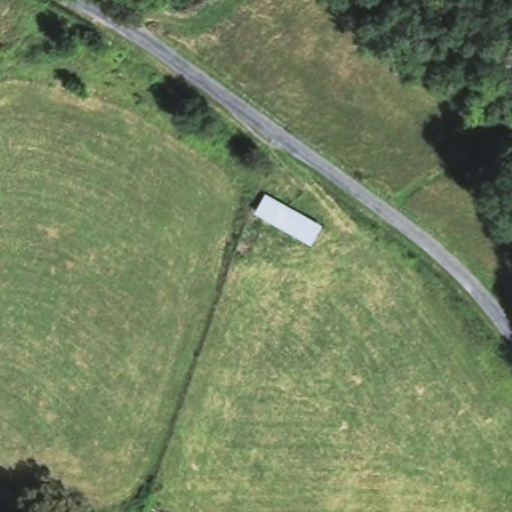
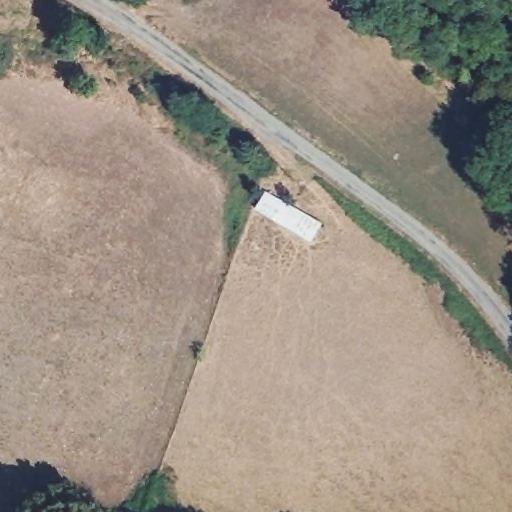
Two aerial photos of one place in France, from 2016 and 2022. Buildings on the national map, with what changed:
unchanged [(315,247),(283,229),(256,214),(268,192),(327,225),(315,247)]

